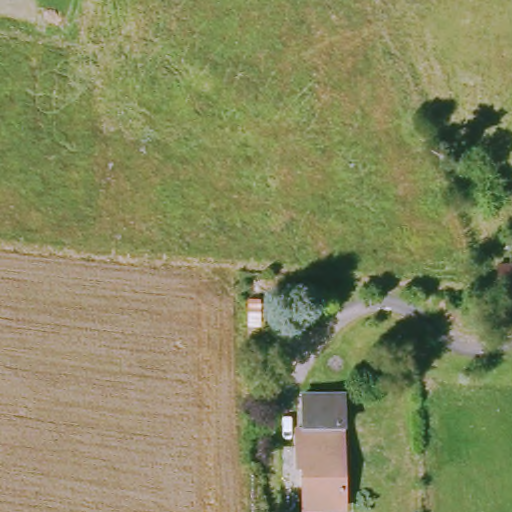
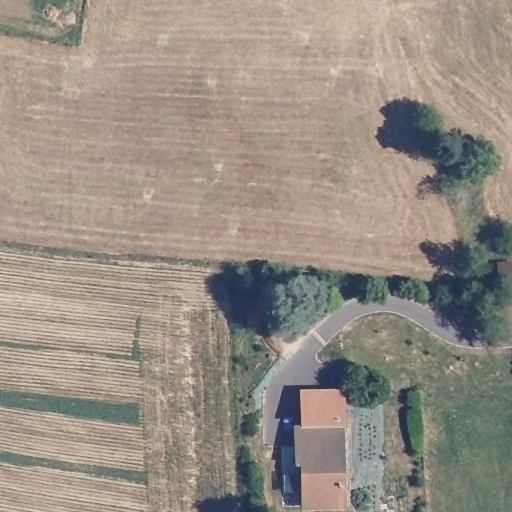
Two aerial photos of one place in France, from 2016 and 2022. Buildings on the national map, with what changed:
unchanged [(338,504),(298,503),(308,393),(345,394),(342,425),(338,504)]

